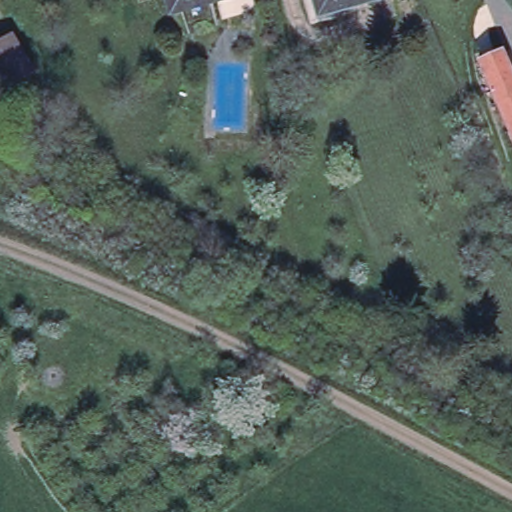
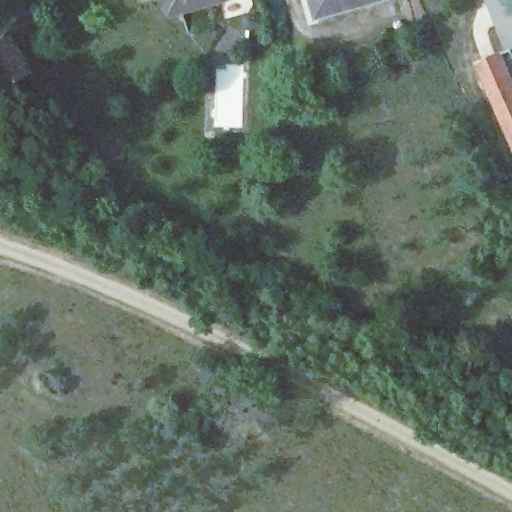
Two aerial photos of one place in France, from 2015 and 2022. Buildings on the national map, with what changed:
unchanged [(167,0),(219,0),(171,13),(167,0)]
unchanged [(315,22),(308,0),(388,0),(388,1),(315,22)]
unchanged [(10,41),(32,76),(2,94),(0,91),(0,47),(10,41)]
unchanged [(500,52),(512,82),(512,141),(478,62),(500,52)]

